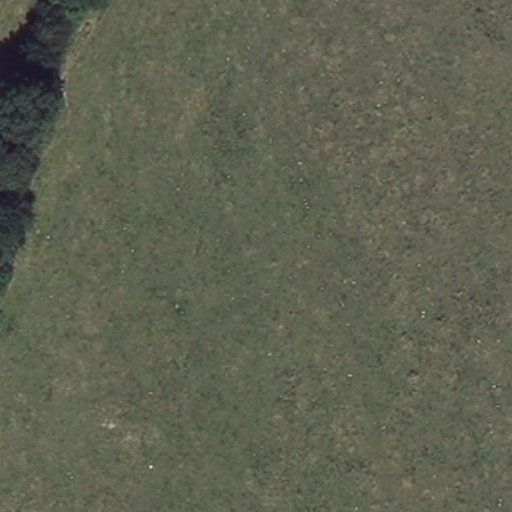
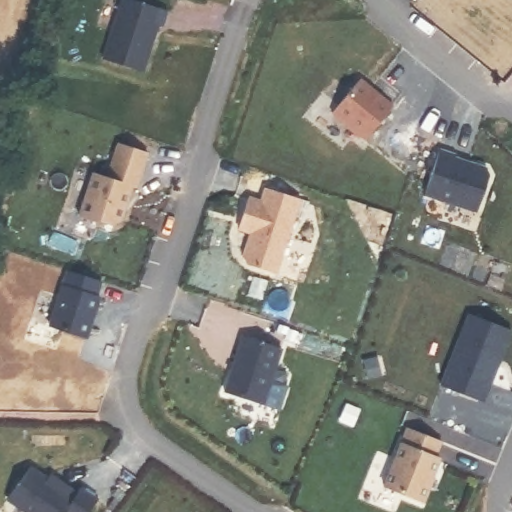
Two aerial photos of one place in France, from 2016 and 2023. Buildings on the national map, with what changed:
new [(147,63),(110,51),(126,0),(165,0),(147,63)]
new [(501,0),(512,0),(512,9),(501,0)]
new [(361,75),(394,102),(366,136),(333,109),(361,75)]
new [(109,172),(120,138),(149,148),(120,222),(79,210),(91,167),(109,172)]
new [(441,143),(457,149),(457,155),(488,166),(492,172),(480,208),(427,191),(441,143)]
new [(251,194),(263,198),(268,184),(302,195),(277,270),(249,261),(246,254),(254,229),(241,224),(251,194)]
new [(69,272),(102,283),(97,297),(101,298),(87,340),(50,328),(69,272)]
new [(512,323),(512,328),(486,393),(442,372),(469,305),(512,323)]
new [(263,402),(224,391),(245,320),(283,333),(263,402)]
new [(411,423),(443,436),(437,451),(442,453),(424,497),(387,483),(411,423)]
new [(74,493),(81,483),(97,494),(84,512),(66,512),(62,510),(61,512),(32,512),(7,494),(30,462),(74,493)]

